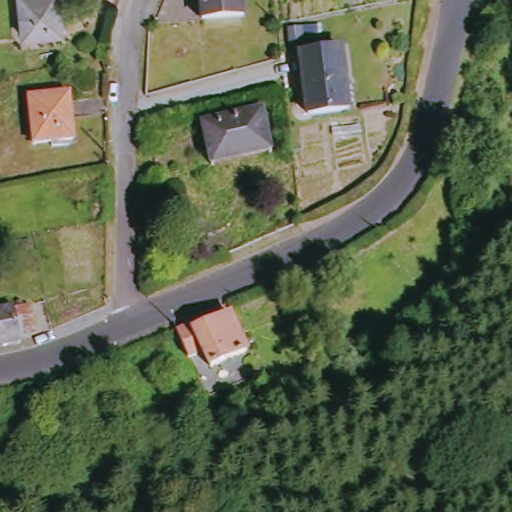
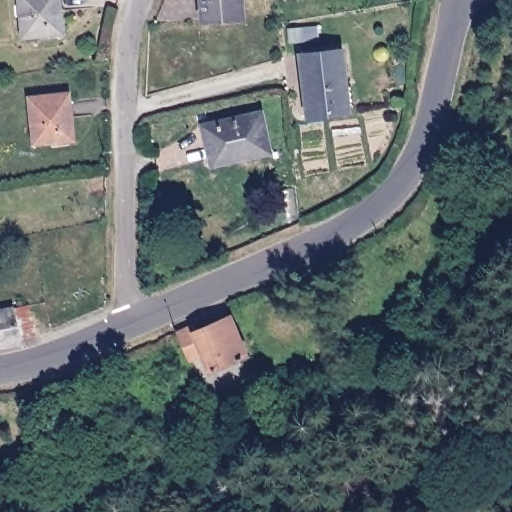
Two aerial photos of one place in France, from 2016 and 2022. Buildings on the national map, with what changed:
unchanged [(30,39),(26,0),(62,0),(67,33),(30,39)]
unchanged [(209,21),(207,0),(247,0),(248,19),(209,21)]
unchanged [(355,112),(313,115),(305,56),(347,51),(355,112)]
unchanged [(79,139),(41,143),(37,97),(74,93),(79,139)]
unchanged [(275,157),(213,171),(203,131),(264,116),(275,157)]
unchanged [(25,344),(0,350),(0,314),(20,309),(25,344)]
unchanged [(201,334),(237,320),(243,318),(250,332),(242,336),(252,360),(216,372),(208,356),(192,361),(183,336),(198,331),(201,334)]

